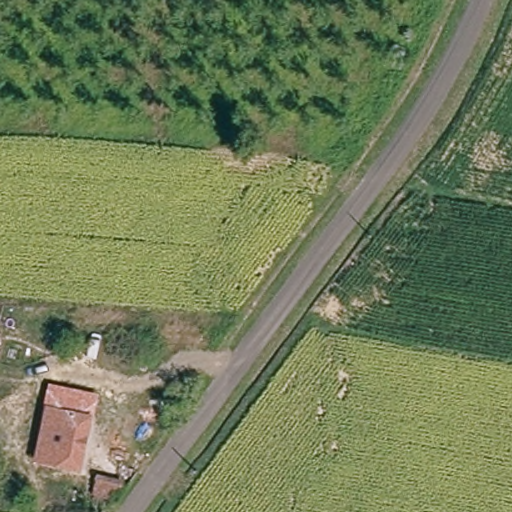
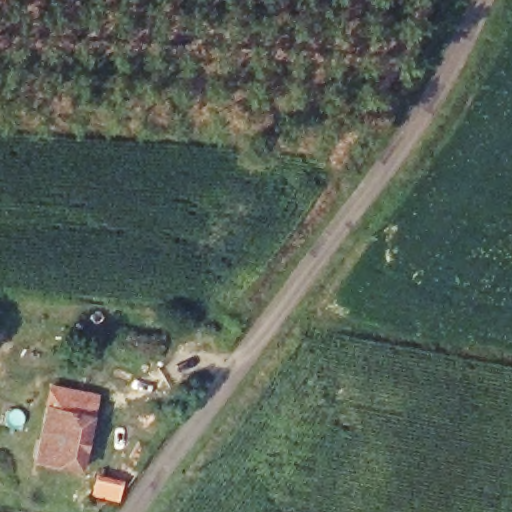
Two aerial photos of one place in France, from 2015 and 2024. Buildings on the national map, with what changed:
unchanged [(56,393),(100,399),(96,419),(85,470),(69,467),(41,462),(52,412),(56,393)]
unchanged [(95,474),(120,476),(121,465),(133,474),(114,500),(91,498),(95,474)]

